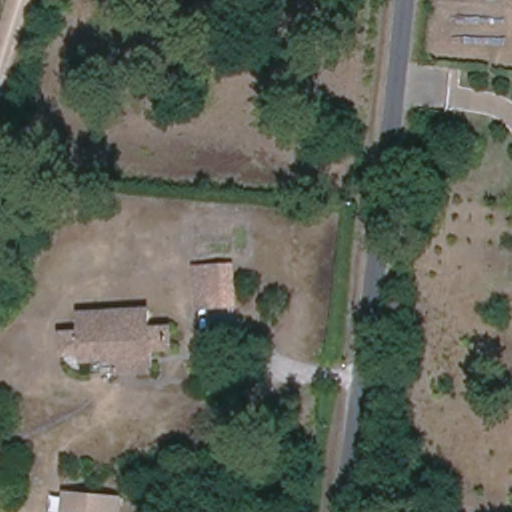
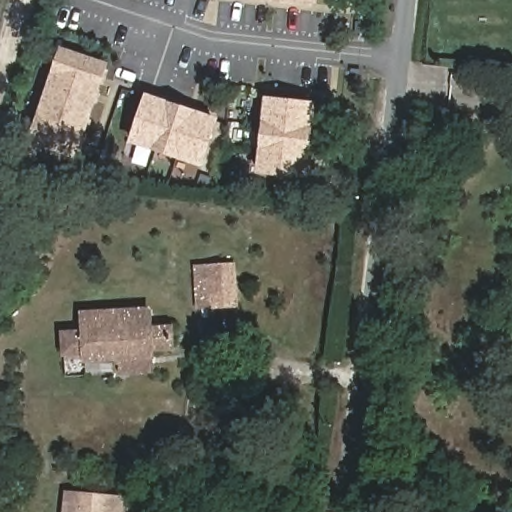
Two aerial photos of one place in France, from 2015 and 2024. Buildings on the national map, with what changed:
new [(260,0),(317,0),(317,5),(260,0)]
new [(78,160),(27,144),(59,46),(108,61),(78,160)]
new [(128,142),(146,93),(218,118),(201,169),(128,142)]
new [(307,180),(257,174),(265,96),(316,102),(307,180)]
unchanged [(229,266),(232,306),(206,307),(204,267),(229,266)]
unchanged [(150,305),(151,324),(171,322),(172,344),(153,345),(153,351),(85,355),(85,349),(66,350),(64,329),(84,327),(83,309),(150,305)]
unchanged [(61,512),(63,490),(124,496),(122,512),(61,512)]

